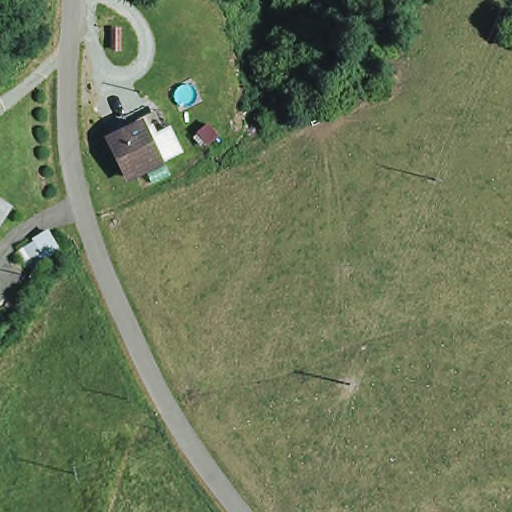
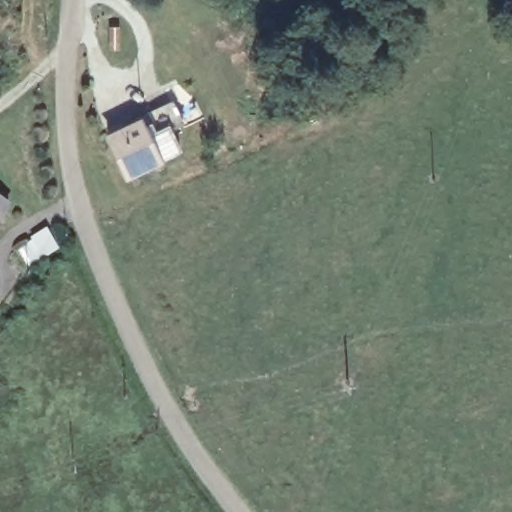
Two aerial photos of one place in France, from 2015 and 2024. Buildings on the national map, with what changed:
unchanged [(109,130),(143,113),(162,154),(129,170),(109,130)]
unchanged [(44,256),(32,235),(52,225),(60,242),(55,250),(44,256)]

